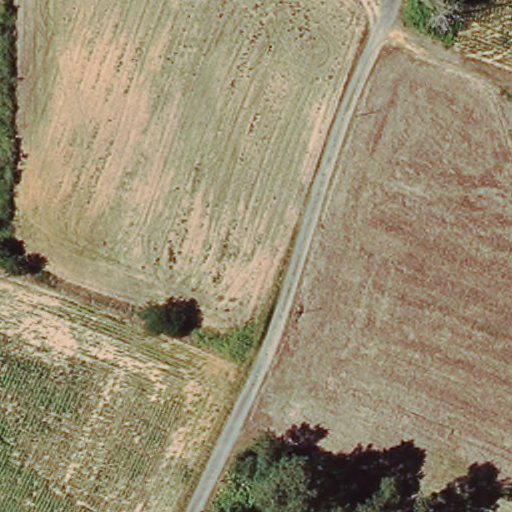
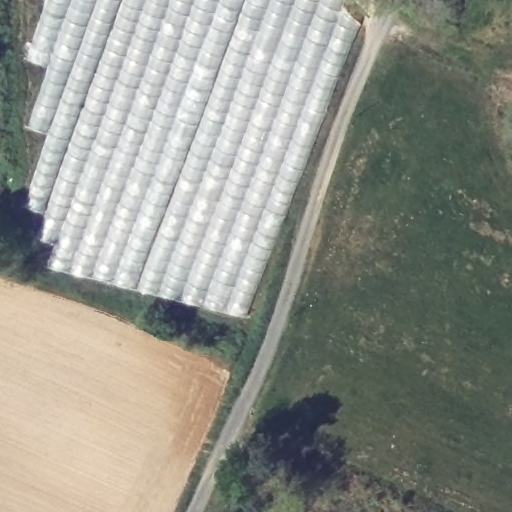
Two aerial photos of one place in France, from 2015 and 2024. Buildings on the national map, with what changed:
new [(105,39),(79,105),(56,178),(43,212),(22,204),(47,132),(27,124),(48,65),(25,55),(46,0),(119,0),(105,39)]
new [(43,212),(56,178),(79,105),(105,39),(119,0),(242,0),(198,122),(135,287),(47,264),(55,242),(35,235),(43,212)]
new [(198,122),(242,0),(345,0),(343,4),(361,20),(337,76),(300,175),(245,316),(135,287),(198,122)]

